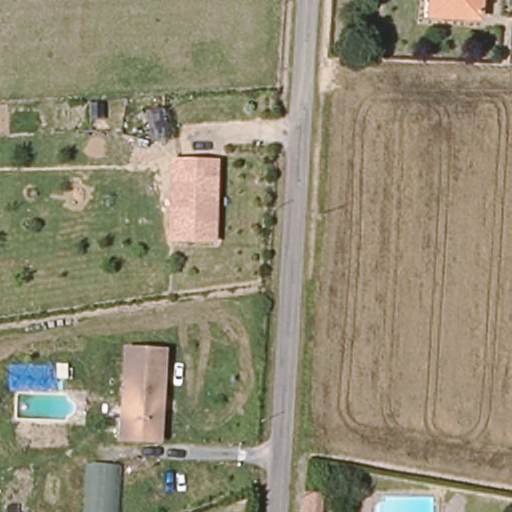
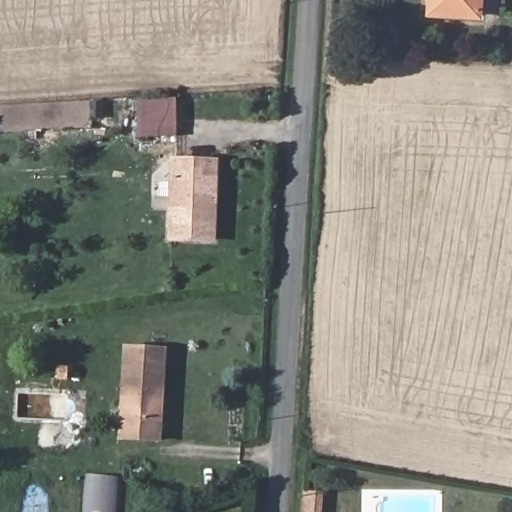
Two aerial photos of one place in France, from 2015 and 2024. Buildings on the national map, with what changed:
unchanged [(485,22),(442,17),(435,16),(436,0),(486,0),(485,22)]
new [(136,139),(136,99),(177,97),(177,137),(136,139)]
unchanged [(214,158),(212,237),(170,237),(172,157),(214,158)]
unchanged [(161,350),(154,440),(117,437),(122,347),(161,350)]
unchanged [(320,512),(304,512),(305,502),(321,504),(320,512)]

